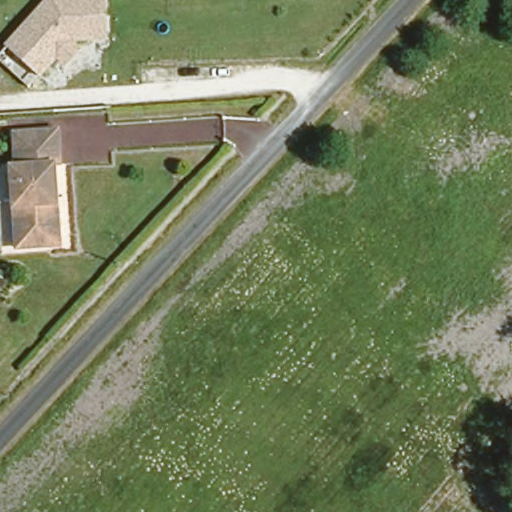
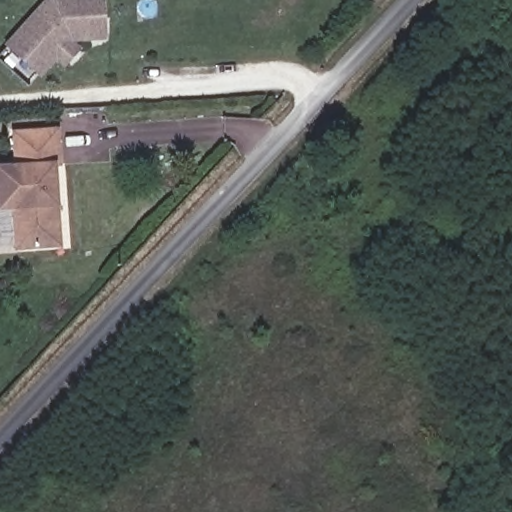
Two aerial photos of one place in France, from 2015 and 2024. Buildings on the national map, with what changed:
unchanged [(108,0),(110,39),(77,41),(85,48),(67,68),(59,61),(43,77),(8,46),(47,0),(108,0)]
unchanged [(15,175),(11,136),(55,131),(59,171),(51,172),(59,240),(14,244),(7,174),(15,175)]

